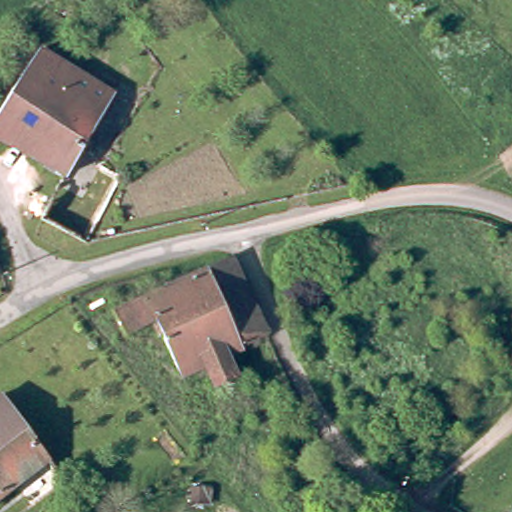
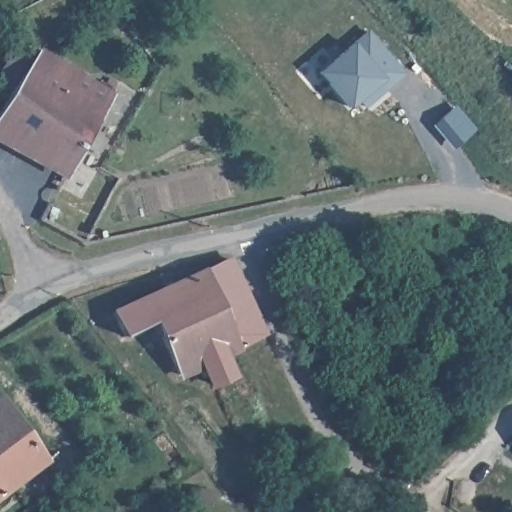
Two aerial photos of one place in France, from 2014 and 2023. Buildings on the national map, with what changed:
new [(351,41),(368,29),(406,73),(366,108),(359,99),(348,108),(317,71),(351,41)]
unchanged [(101,149),(95,161),(85,155),(71,179),(0,141),(0,119),(11,99),(42,54),(117,99),(91,144),(101,149)]
unchanged [(239,379),(218,389),(208,367),(183,379),(159,325),(130,340),(117,318),(235,264),(269,339),(229,357),(239,379)]
unchanged [(0,505),(0,403),(6,399),(53,464),(0,505)]
unchanged [(210,504),(205,503),(190,502),(190,488),(206,489),(211,489),(210,504)]

